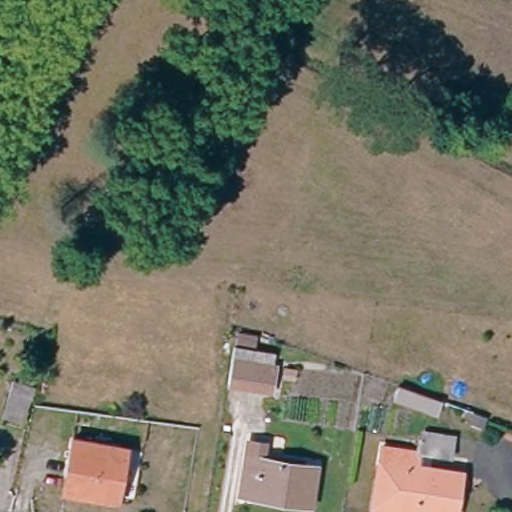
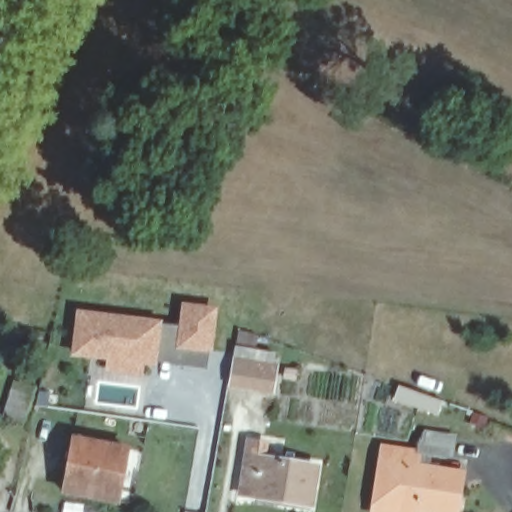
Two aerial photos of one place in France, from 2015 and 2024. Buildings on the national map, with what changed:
new [(112,372),(113,359),(77,355),(80,337),(82,315),(186,328),(188,308),(218,312),(212,352),(210,372),(174,367),(157,365),(144,363),(142,376),(112,372)]
unchanged [(273,390),(229,384),(233,358),(235,348),(278,353),(277,364),(273,390)]
unchanged [(436,402),(431,415),(395,402),(399,390),(404,391),(436,402)]
unchanged [(382,446),(416,450),(416,449),(418,431),(450,435),(447,455),(424,452),(422,463),(461,468),(455,512),(451,512),(412,507),(411,512),(387,512),(373,510),(375,501),(380,464),(382,446)]
unchanged [(77,434),(131,447),(118,498),(65,487),(77,434)]
unchanged [(239,448),(306,461),(302,495),(235,485),(239,448)]

